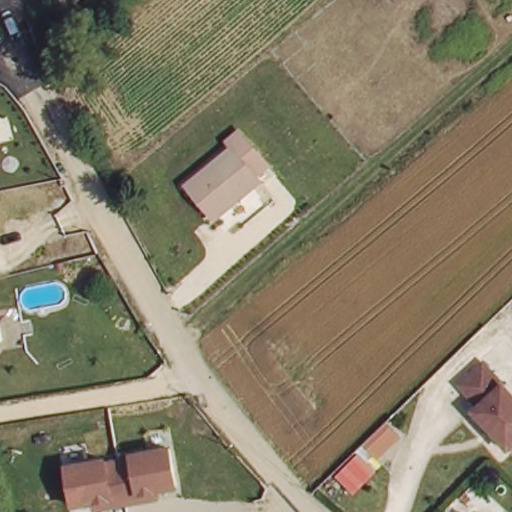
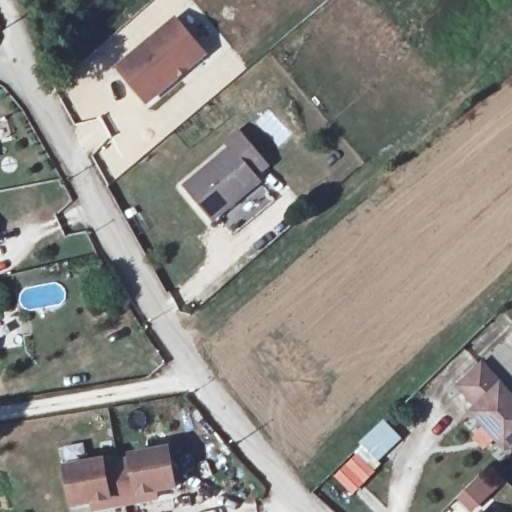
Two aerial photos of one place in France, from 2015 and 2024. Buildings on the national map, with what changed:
new [(175,15),(207,54),(147,106),(114,67),(175,15)]
unchanged [(229,149),(225,144),(237,135),(265,168),(255,176),(260,181),(212,220),(183,187),(229,149)]
unchanged [(512,442),(478,415),(483,409),(461,391),(481,367),(512,392),(512,442)]
new [(356,455),(353,452),(385,421),(400,437),(375,459),(383,467),(353,496),(335,478),(356,455)]
unchanged [(157,487),(157,498),(92,509),(90,502),(67,505),(60,463),(165,446),(173,484),(157,487)]

